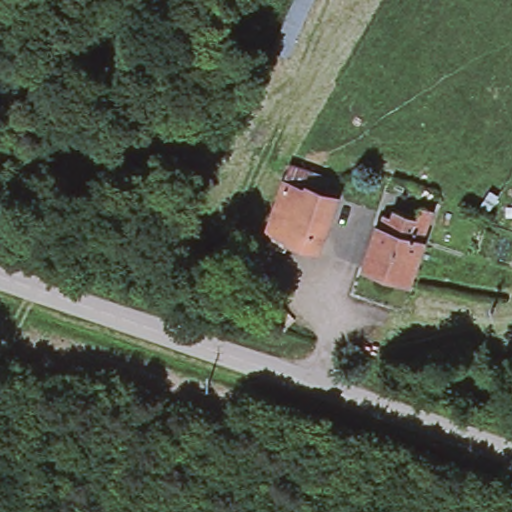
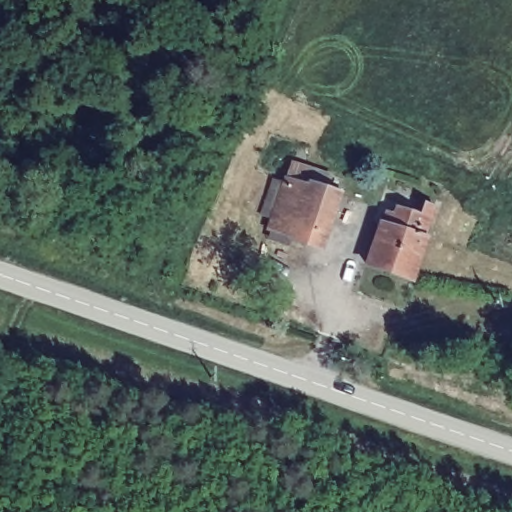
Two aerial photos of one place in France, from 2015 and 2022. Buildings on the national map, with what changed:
unchanged [(267,225),(283,178),(305,185),(307,180),(342,192),(323,251),(292,240),(295,234),(267,225)]
unchanged [(390,226),(396,209),(415,215),(418,204),(430,209),(406,284),(362,270),(377,222),(390,226)]

